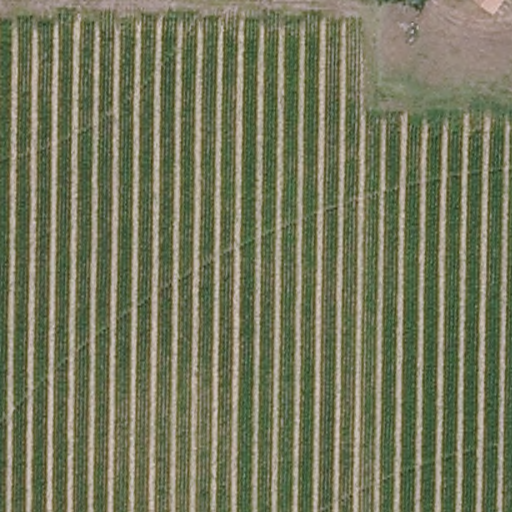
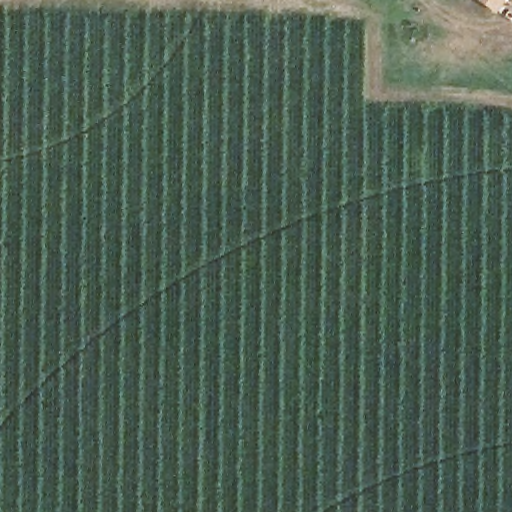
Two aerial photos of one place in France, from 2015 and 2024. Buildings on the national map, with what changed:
unchanged [(487,8),(490,0),(512,0),(512,14),(487,8)]

